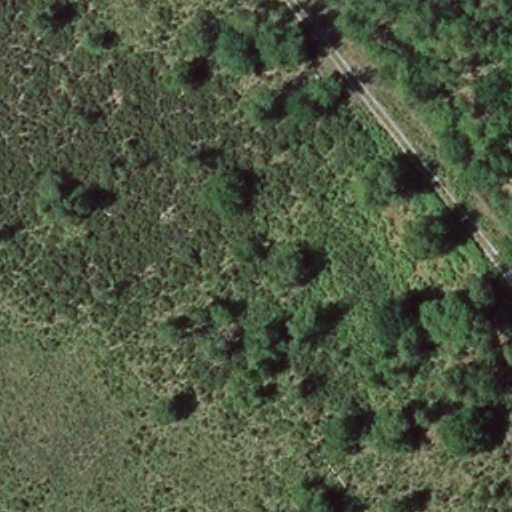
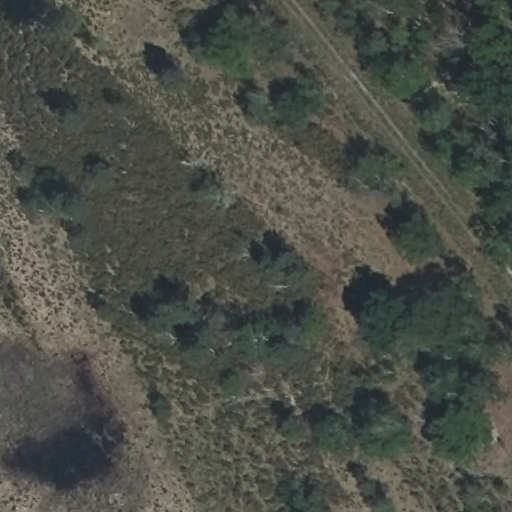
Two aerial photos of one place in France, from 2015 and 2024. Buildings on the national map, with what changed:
[]

